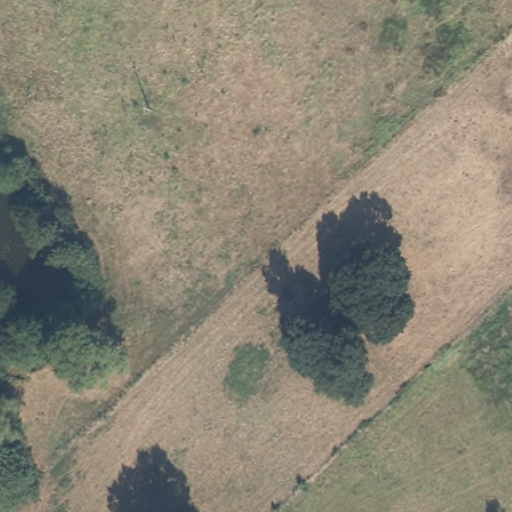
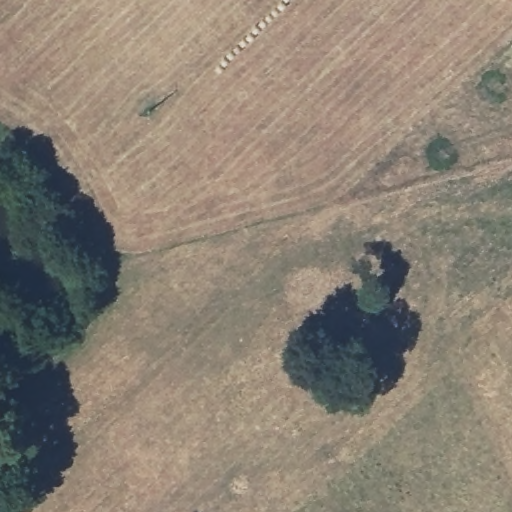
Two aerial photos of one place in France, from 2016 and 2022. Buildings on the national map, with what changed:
[]

